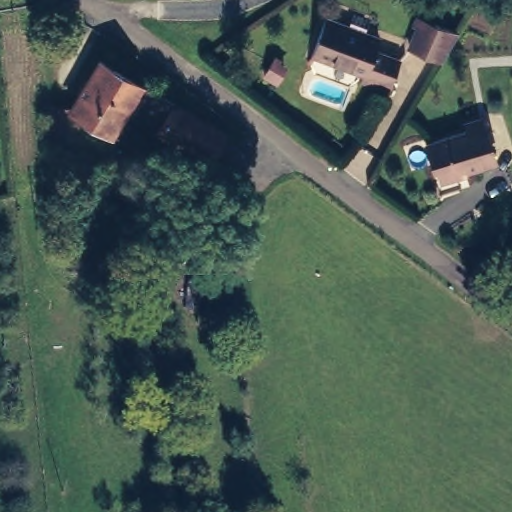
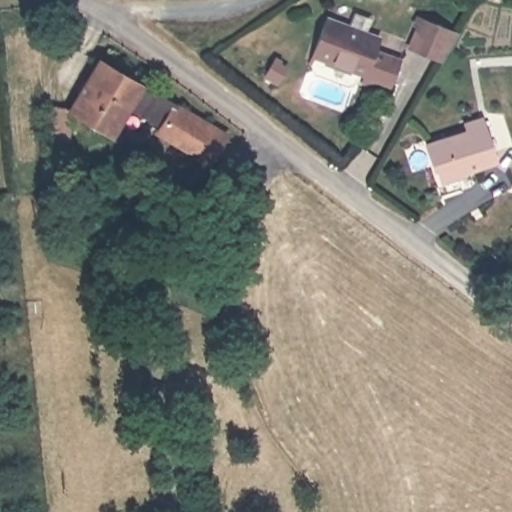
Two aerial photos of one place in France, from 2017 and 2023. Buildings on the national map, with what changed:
unchanged [(416,23),(412,22),(415,16),(431,23),(455,32),(438,62),(406,48),(416,23)]
unchanged [(325,23),(378,42),(374,53),(399,62),(389,92),(361,83),(364,75),(313,58),(325,23)]
unchanged [(216,121),(201,149),(149,120),(154,110),(127,94),(109,125),(71,100),(96,54),(164,92),(216,121)]
unchanged [(71,136),(50,136),(52,104),(73,105),(71,136)]
unchanged [(437,168),(433,170),(425,150),(466,133),(464,127),(480,121),(497,162),(443,184),(437,168)]

